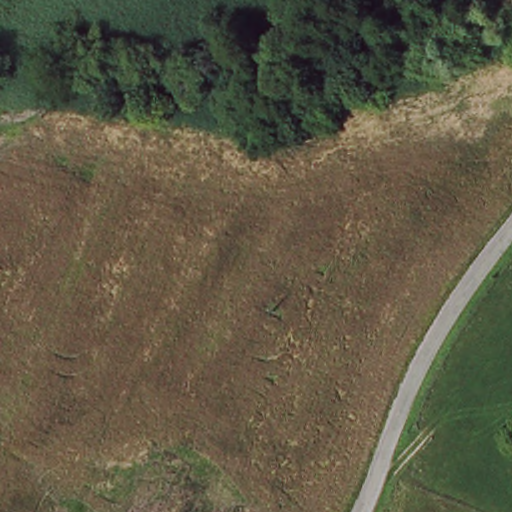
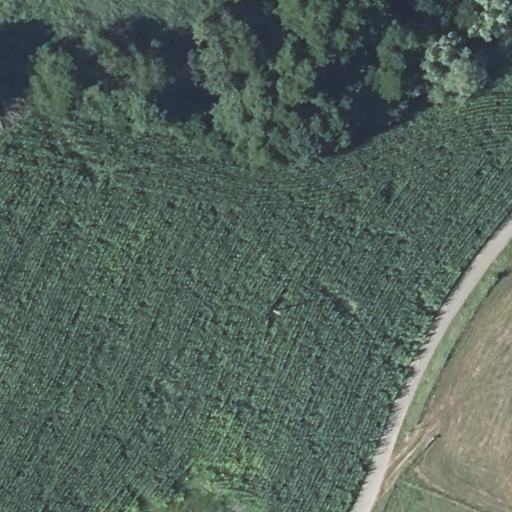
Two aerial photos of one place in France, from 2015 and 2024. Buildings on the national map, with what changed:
[]

